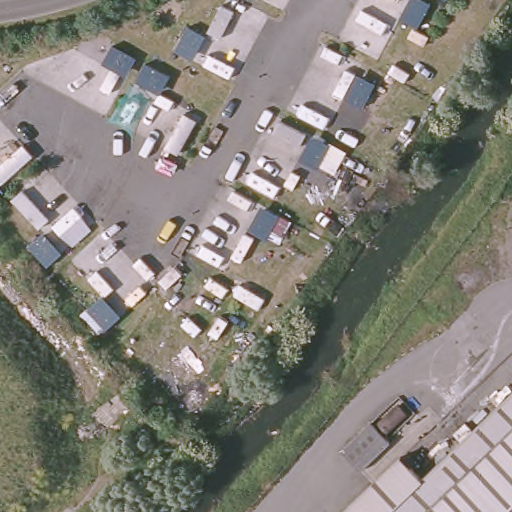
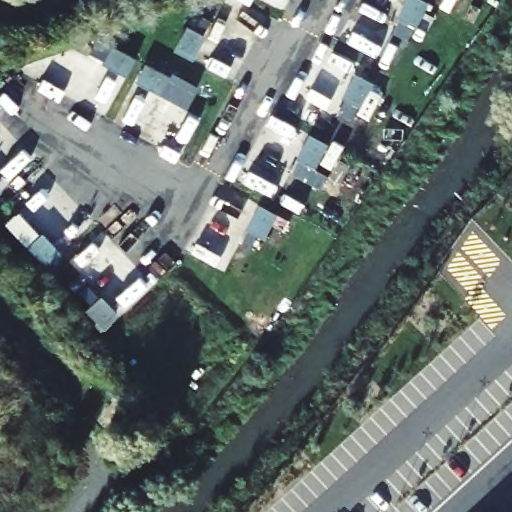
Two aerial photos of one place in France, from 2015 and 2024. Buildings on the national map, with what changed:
unchanged [(432,6),(419,31),(402,21),(413,0),(420,0),(432,6)]
unchanged [(447,2),(442,0),(448,0),(447,2)]
unchanged [(196,65),(178,55),(191,31),(208,40),(196,65)]
unchanged [(103,68),(113,51),(138,64),(128,81),(103,68)]
unchanged [(171,82),(162,99),(138,86),(146,69),(171,82)]
unchanged [(351,92),(359,77),(376,87),(376,88),(364,111),(346,102),(351,92)]
unchanged [(314,139),(331,148),(318,173),(301,163),(314,139)]
unchanged [(5,195),(0,200),(0,190),(5,195)]
unchanged [(281,219),(268,244),(249,234),(263,210),(281,219)]
unchanged [(64,257),(50,271),(30,251),(45,237),(64,257)]
unchanged [(123,320),(109,334),(90,314),(104,300),(123,320)]
demolished [(399,459),(415,477),(470,425),(512,385),(512,512),(344,512),(369,488),(399,459)]
demolished [(388,450),(356,479),(338,460),(370,430),(388,450)]

